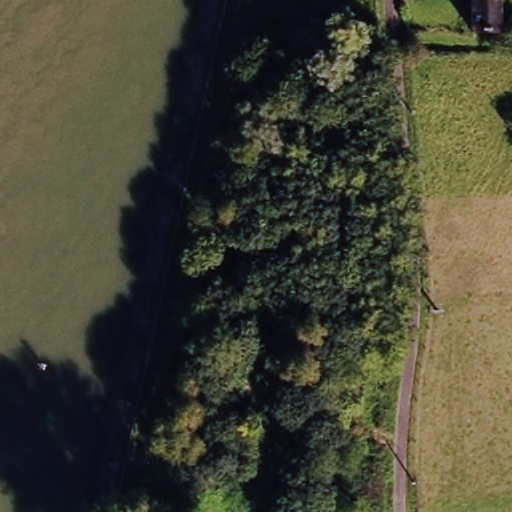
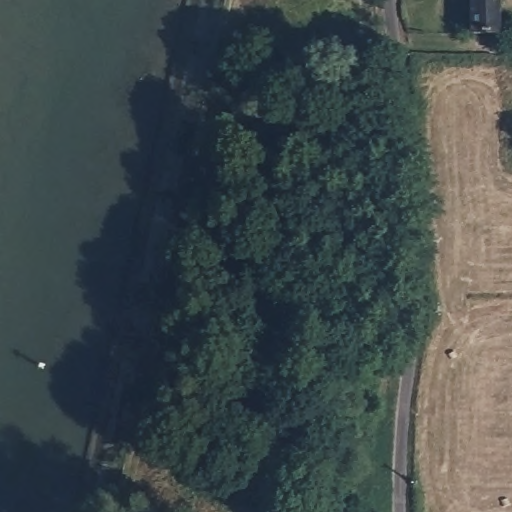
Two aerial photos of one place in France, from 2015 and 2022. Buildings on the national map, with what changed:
unchanged [(499,35),(470,34),(472,0),(500,0),(499,35)]

